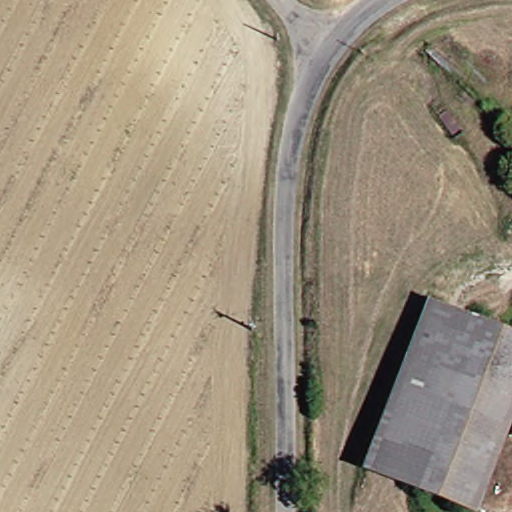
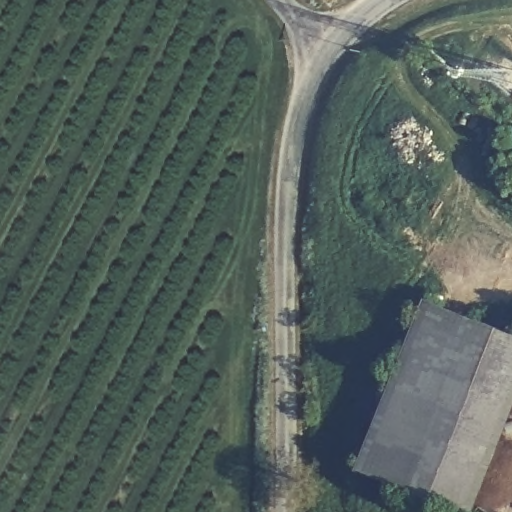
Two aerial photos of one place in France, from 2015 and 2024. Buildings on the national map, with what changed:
unchanged [(481,328),(422,501),(403,494),(438,409),(402,395),(431,312),(481,328)]
unchanged [(512,400),(474,512),(456,512),(422,501),(481,328),(512,339),(512,400)]
unchanged [(438,409),(403,494),(372,483),(402,395),(438,409)]

